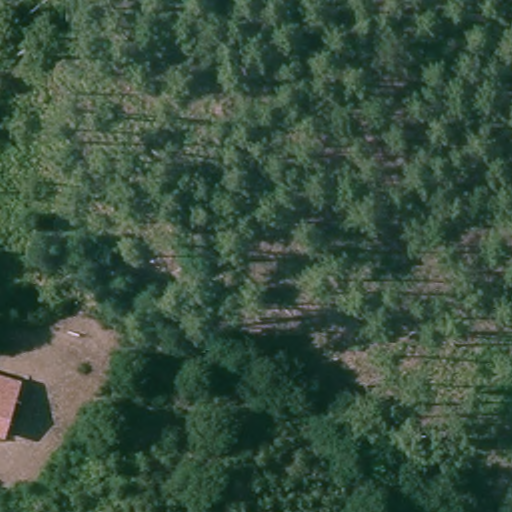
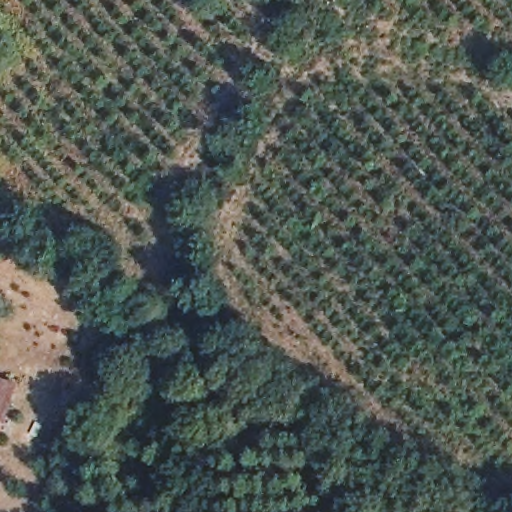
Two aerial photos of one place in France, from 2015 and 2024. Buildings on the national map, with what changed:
unchanged [(3,424),(0,434),(0,383),(15,388),(3,424)]

